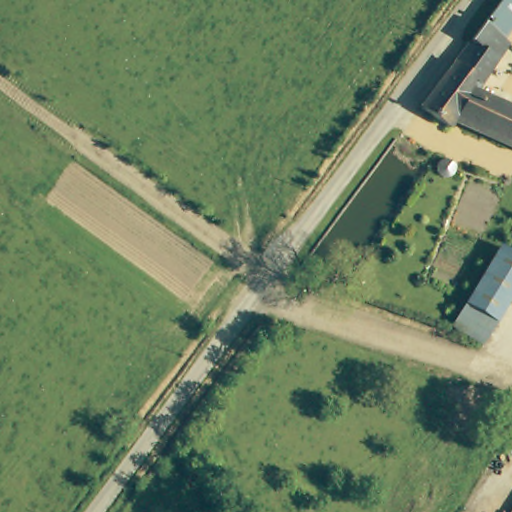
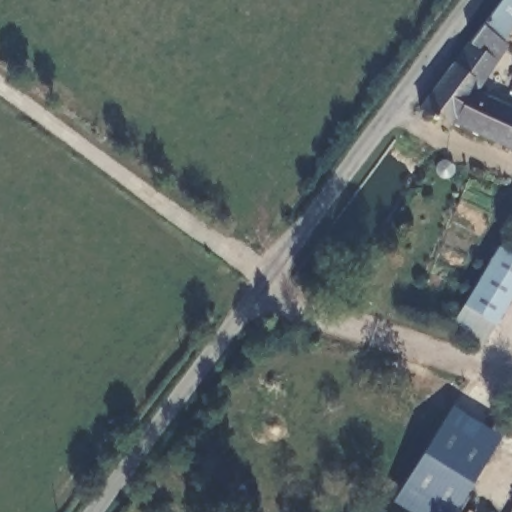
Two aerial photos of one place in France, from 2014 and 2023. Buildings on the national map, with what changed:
unchanged [(478,91),(512,108),(512,145),(464,122),(455,133),(424,112),(455,69),(507,0),(512,0),(512,34),(500,49),(507,55),(478,91)]
unchanged [(462,164),(464,168),(458,176),(448,178),(438,169),(446,157),(453,157),(462,164)]
unchanged [(512,301),(486,345),(457,326),(502,250),(512,256),(512,301)]
new [(455,512),(407,512),(391,501),(452,404),(501,435),(455,512)]

